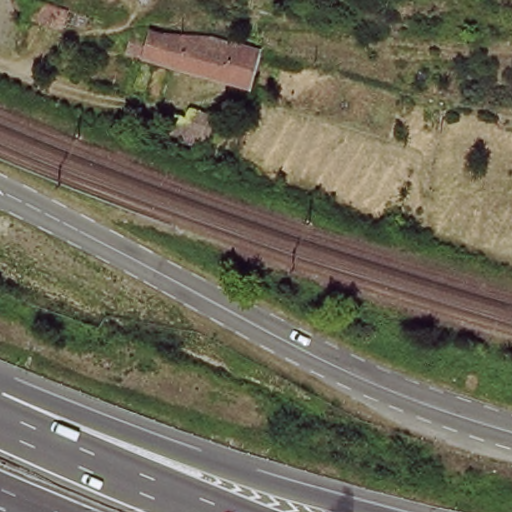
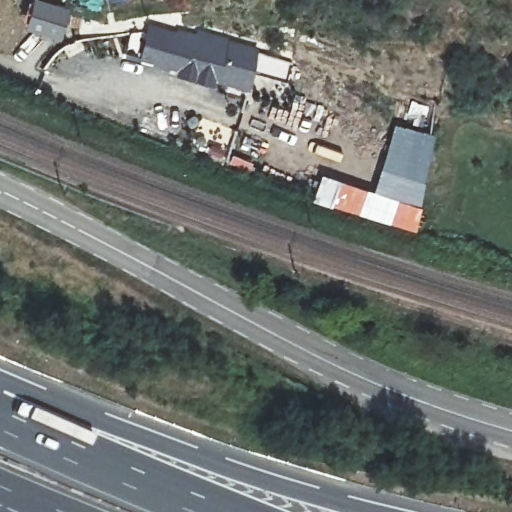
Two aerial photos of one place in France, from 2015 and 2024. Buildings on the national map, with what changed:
unchanged [(191,73),(149,62),(155,42),(164,45),(165,41),(165,39),(185,40),(211,41),(261,56),(249,91),(191,73)]
unchanged [(168,73),(158,105),(147,101),(149,91),(138,87),(145,65),(168,73)]
new [(389,223),(358,214),(326,204),(329,194),(326,193),(330,178),(366,189),(374,192),(395,125),(437,136),(421,205),(416,231),(389,223)]

